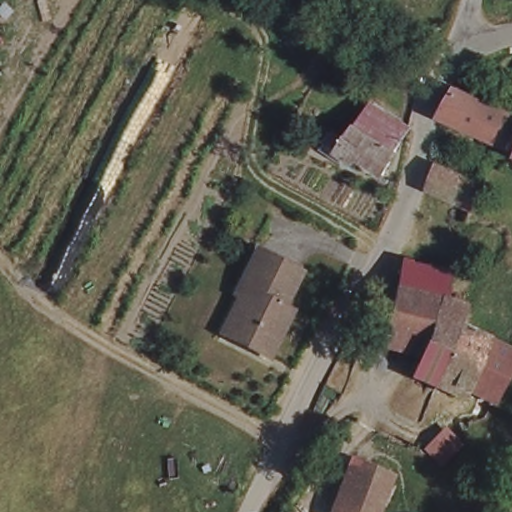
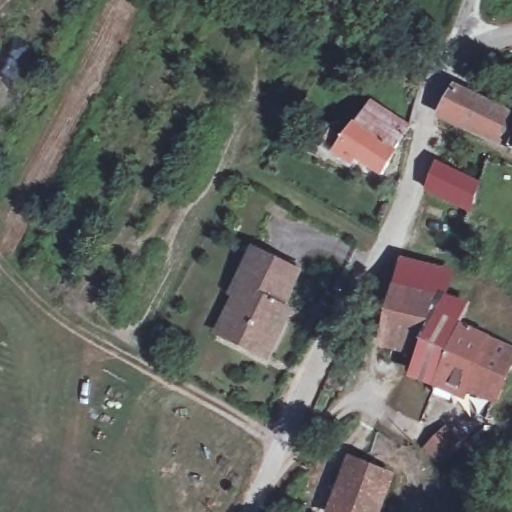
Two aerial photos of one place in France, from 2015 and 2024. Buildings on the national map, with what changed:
unchanged [(474,109),(475,106),(512,121),(512,151),(442,120),(457,95),(474,109)]
unchanged [(405,123),(378,175),(352,161),(349,166),(320,152),(328,136),(346,145),(367,105),(405,123)]
unchanged [(313,136),(303,156),(280,145),(290,125),(313,136)]
unchanged [(475,182),(467,209),(427,192),(435,166),(475,182)]
unchanged [(232,295),(249,254),(297,273),(282,308),(291,312),(270,361),(229,343),(216,337),(232,295)]
unchanged [(403,261),(447,275),(439,301),(395,288),(403,261)]
unchanged [(383,326),(393,287),(395,288),(439,301),(462,309),(456,327),(437,381),(413,372),(417,355),(377,342),(383,326)]
unchanged [(512,352),(512,357),(493,398),(470,390),(465,390),(437,381),(456,327),(507,350),(512,352)]
unchanged [(389,476),(379,512),(339,512),(355,465),(389,476)]

